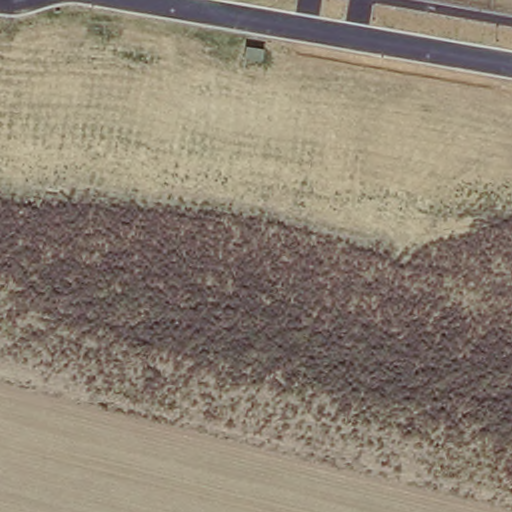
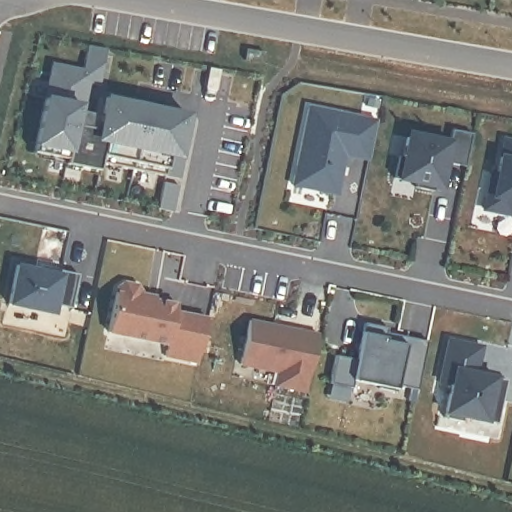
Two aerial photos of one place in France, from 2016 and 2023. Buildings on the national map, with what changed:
new [(177,177),(98,161),(96,169),(63,162),(64,158),(31,151),(49,63),(79,69),(84,47),(103,50),(96,85),(85,82),(80,106),(76,105),(72,124),(103,130),(105,123),(97,122),(98,113),(100,105),(188,122),(185,139),(184,146),(177,177)]
new [(247,49),(265,52),(264,63),(245,60),(247,49)]
new [(100,105),(102,96),(184,112),(183,121),(100,105)]
new [(377,121),(368,159),(345,155),(337,195),(293,185),(309,108),(377,121)]
new [(90,117),(91,112),(98,114),(97,122),(105,123),(103,130),(72,124),(75,111),(90,117)]
new [(434,189),(416,185),(416,181),(395,176),(399,154),(403,155),(407,135),(431,140),(432,135),(449,139),(452,127),(472,131),(466,164),(446,160),(445,165),(441,186),(435,185),(439,164),(434,189)]
new [(483,209),(491,171),(497,172),(503,139),(512,141),(512,210),(511,215),(483,209)]
new [(161,180),(176,183),(170,209),(155,206),(161,180)]
new [(44,270),(45,266),(81,273),(74,308),(58,304),(56,313),(11,304),(19,265),(44,270)]
new [(45,266),(44,270),(34,268),(45,266)]
new [(119,286),(127,282),(139,284),(144,291),(143,296),(179,303),(178,311),(210,317),(201,361),(168,355),(170,343),(111,330),(119,286)]
new [(275,323),(275,324),(287,327),(287,326),(320,332),(309,390),(278,384),(281,370),(243,363),(252,319),(275,323)]
new [(358,357),(366,320),(389,325),(386,337),(388,330),(408,334),(429,338),(419,387),(399,383),(398,389),(381,386),(381,383),(355,378),(353,386),(331,381),(337,353),(358,357)]
new [(478,371),(480,371),(486,372),(509,377),(500,421),(466,414),(465,419),(447,416),(454,381),(442,379),(450,338),(483,344),(478,371)]

